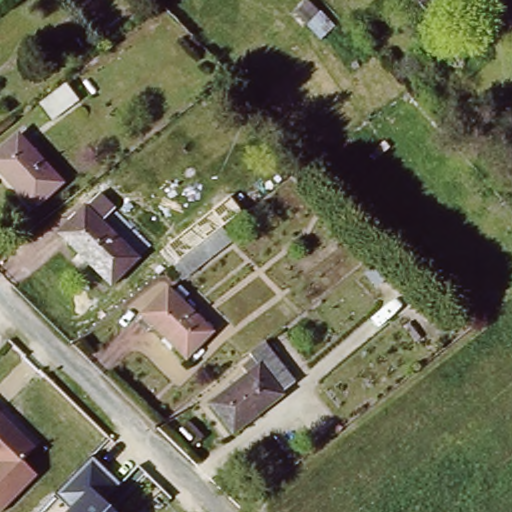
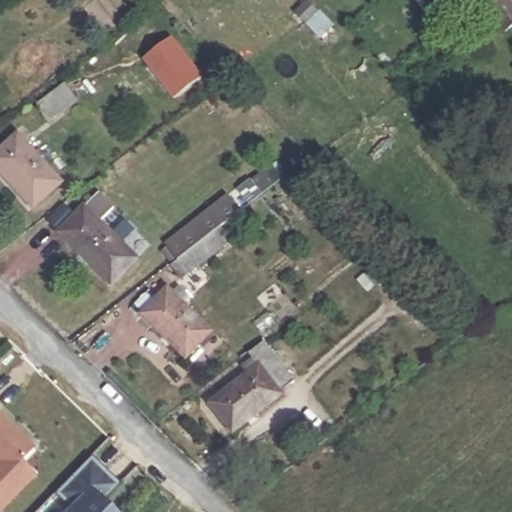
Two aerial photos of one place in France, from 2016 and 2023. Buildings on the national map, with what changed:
unchanged [(437,27),(410,0),(455,0),(461,6),(437,27)]
unchanged [(506,36),(480,0),(512,0),(512,34),(506,36)]
new [(172,39),(202,79),(175,100),(145,60),(172,39)]
unchanged [(511,48),(512,48),(512,50),(511,48)]
new [(68,88),(80,103),(54,122),(42,107),(68,88)]
unchanged [(35,212),(0,177),(0,149),(19,133),(67,184),(35,212)]
unchanged [(58,233),(83,209),(87,213),(93,207),(105,217),(100,224),(140,262),(113,287),(58,233)]
unchanged [(207,231),(218,222),(225,229),(212,238),(207,231)]
unchanged [(200,225),(211,239),(181,263),(170,248),(200,225)]
unchanged [(166,271),(175,264),(178,267),(227,229),(238,242),(216,259),(186,283),(175,270),(170,274),(166,271)]
unchanged [(167,287),(213,330),(186,357),(140,315),(167,287)]
unchanged [(260,361),(283,389),(259,407),(263,413),(251,423),(246,417),(233,427),(210,398),(260,361)]
unchanged [(22,459),(37,474),(1,512),(0,512),(0,413),(35,446),(22,459)]
unchanged [(114,478),(99,493),(117,512),(66,512),(70,507),(55,492),(90,456),(114,478)]

